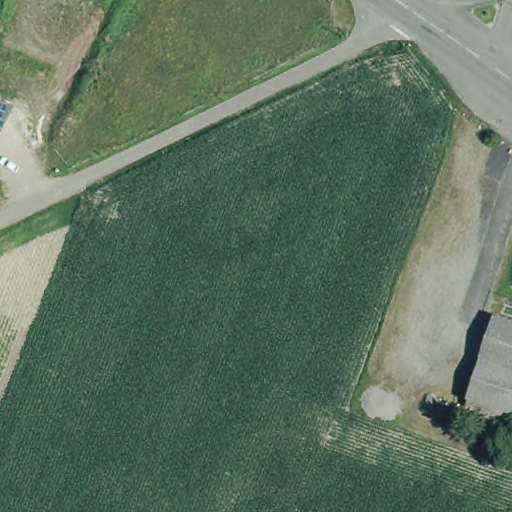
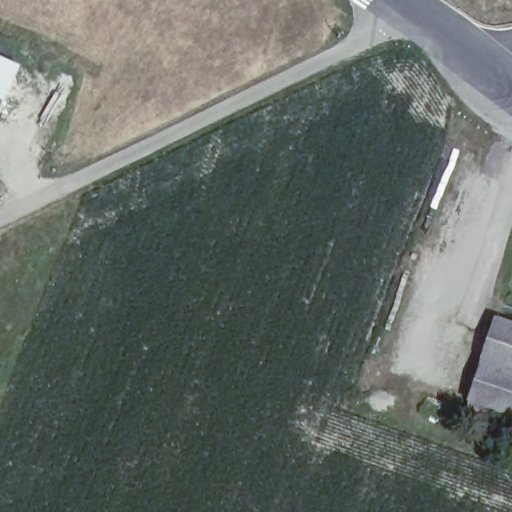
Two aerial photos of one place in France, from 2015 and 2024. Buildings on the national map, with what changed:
new [(22,63),(5,104),(0,102),(0,54),(22,63)]
unchanged [(5,104),(0,115),(0,102),(5,104)]
unchanged [(502,309),(512,312),(512,361),(487,352),(502,309)]
unchanged [(473,389),(487,352),(512,361),(512,416),(469,401),(471,395),(473,389)]

